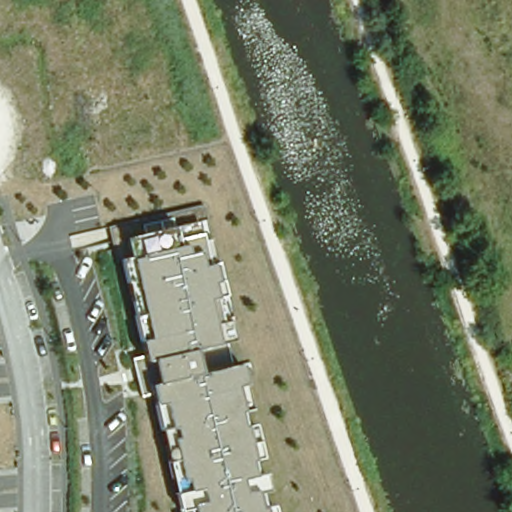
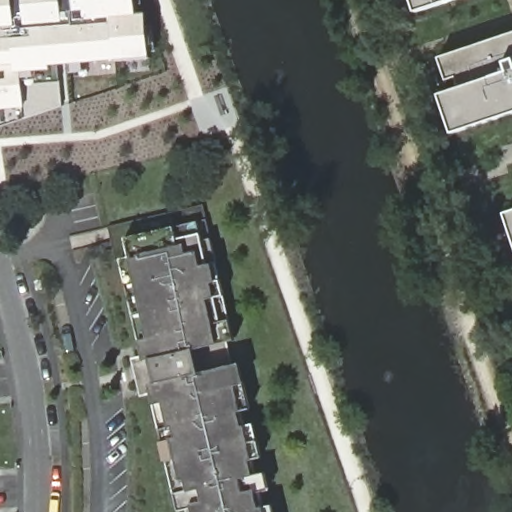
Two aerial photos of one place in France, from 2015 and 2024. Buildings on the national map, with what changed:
new [(146,13),(153,56),(60,65),(63,104),(25,117),(0,126),(0,0),(136,0),(138,14),(146,13)]
new [(413,0),(457,0),(418,14),(413,0)]
new [(443,136),(430,99),(439,96),(428,61),(512,33),(512,113),(443,136)]
new [(505,215),(512,212),(512,235),(505,215)]
unchanged [(120,262),(130,260),(125,238),(199,222),(204,239),(211,237),(237,336),(193,349),(198,373),(242,364),(276,512),(180,512),(120,262)]

